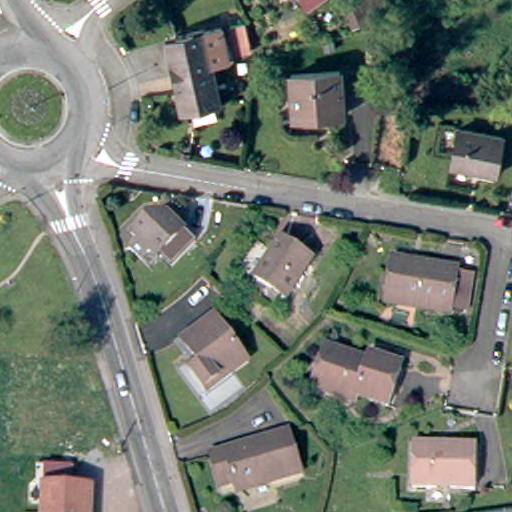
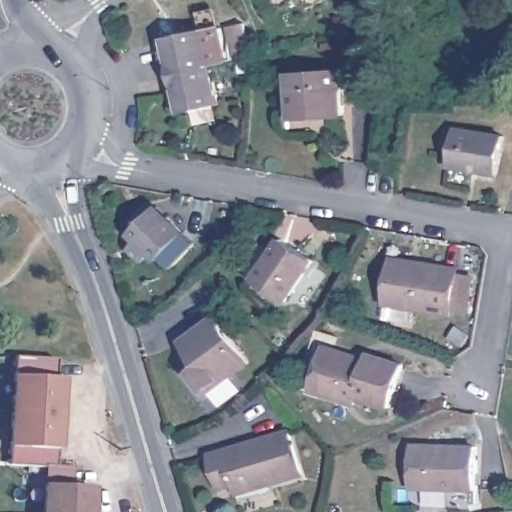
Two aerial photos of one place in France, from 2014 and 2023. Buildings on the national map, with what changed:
unchanged [(165,34),(175,32),(202,26),(202,28),(220,24),(222,36),(227,35),(232,58),(228,59),(210,63),(195,66),(172,71),(167,49),(165,34)]
unchanged [(178,94),(172,71),(195,66),(210,63),(218,100),(190,106),(181,108),(178,94)]
unchanged [(288,77),(338,72),(343,118),(320,120),(319,111),(292,113),(288,77)]
unchanged [(458,131),(502,139),(495,175),(451,166),(458,131)]
unchanged [(170,263),(159,253),(156,256),(148,249),(141,258),(127,246),(135,236),(128,230),(146,210),(153,203),(164,213),(191,237),(170,263)]
unchanged [(279,239),(310,259),(285,300),(252,279),(279,239)]
unchanged [(443,315),(443,319),(379,305),(387,262),(416,268),(417,265),(451,272),(451,277),(465,279),(460,309),(458,318),(443,315)]
unchanged [(201,383),(189,368),(183,361),(192,353),(180,336),(210,311),(244,355),(227,369),(205,388),(201,383)]
unchanged [(370,356),(401,367),(387,409),(357,398),(355,406),(320,394),(310,390),(325,347),(335,351),(367,362),(370,356)]
new [(12,465),(12,447),(8,446),(10,377),(15,377),(15,360),(56,361),(56,379),(61,379),(60,450),(57,450),(57,468),(45,468),(12,465)]
unchanged [(233,491),(232,485),(217,489),(208,457),(288,435),(300,478),(268,487),(235,497),(233,491)]
unchanged [(473,491),(413,491),(414,451),(415,445),(438,445),(474,446),(473,491)]
unchanged [(73,487),(96,489),(95,512),(42,512),(45,468),(75,469),(73,487)]

